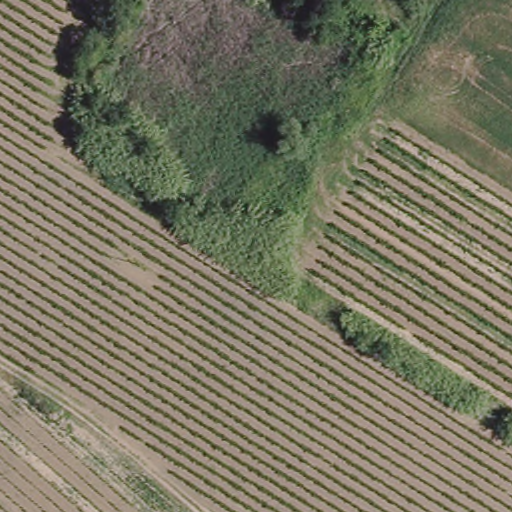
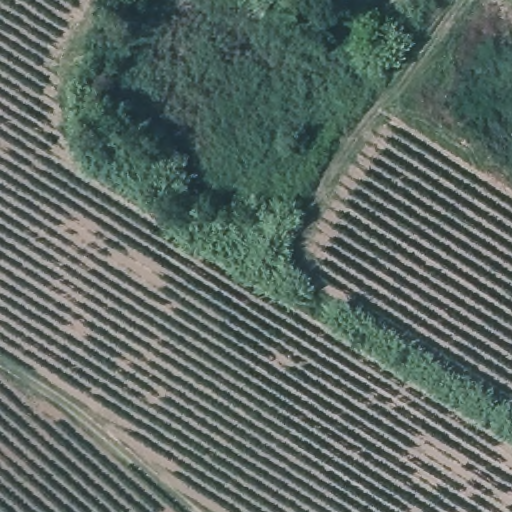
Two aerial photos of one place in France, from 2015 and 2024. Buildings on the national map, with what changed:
[]

